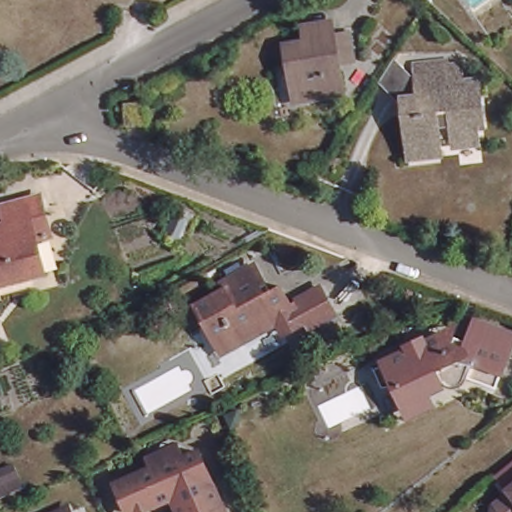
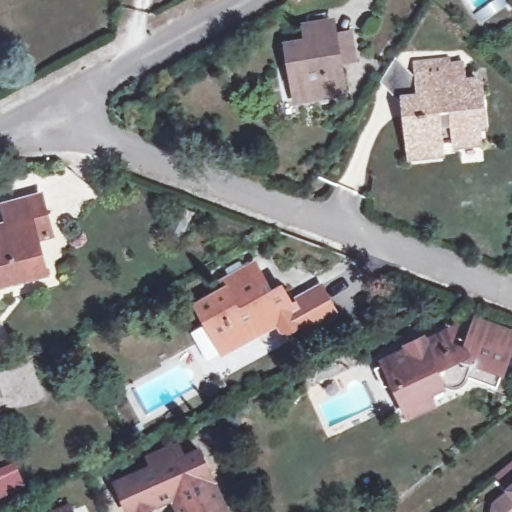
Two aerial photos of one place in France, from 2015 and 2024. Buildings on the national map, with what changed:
unchanged [(304,31),(330,27),(332,35),(347,32),(352,61),(337,64),(342,94),(294,102),(284,44),(305,41),(304,31)]
unchanged [(424,106),(422,86),(420,72),(452,68),(452,74),(465,73),(467,89),(482,88),(487,127),(479,128),(481,148),(457,151),(457,148),(443,150),(444,156),(430,158),(430,160),(418,162),(416,142),(412,143),(410,121),(417,120),(415,107),(424,106)]
unchanged [(417,120),(410,121),(409,107),(405,107),(379,91),(380,89),(392,70),(417,86),(422,86),(424,106),(415,107),(417,120)]
unchanged [(144,101),(145,123),(126,124),(124,102),(144,101)]
unchanged [(0,284),(0,232),(5,231),(4,224),(10,222),(6,204),(44,195),(49,212),(55,233),(40,237),(44,254),(49,272),(37,274),(0,284)]
unchanged [(226,347),(205,309),(234,294),(231,288),(264,270),(274,289),(269,292),(272,298),(288,289),(298,308),(302,306),(330,291),(347,322),(319,337),(315,330),(295,341),(287,326),(250,346),(232,357),(226,347)]
unchanged [(403,340),(402,337),(418,330),(419,332),(424,331),(434,329),(442,329),(451,332),(447,341),(459,346),(466,329),(475,333),(480,321),(505,331),(500,343),(508,346),(492,386),(459,373),(457,376),(453,379),(447,380),(442,380),(438,376),(404,405),(400,400),(397,394),(395,387),(394,378),(380,378),(372,360),(389,352),(386,348),(403,340)]
unchanged [(174,442),(180,455),(196,448),(224,512),(223,512),(177,512),(173,502),(174,502),(169,490),(167,495),(158,499),(153,497),(126,509),(114,480),(151,463),(147,454),(174,442)]
unchanged [(498,512),(497,511),(499,502),(512,491),(512,512),(498,512)]
unchanged [(65,512),(41,512),(60,503),(65,512)]

